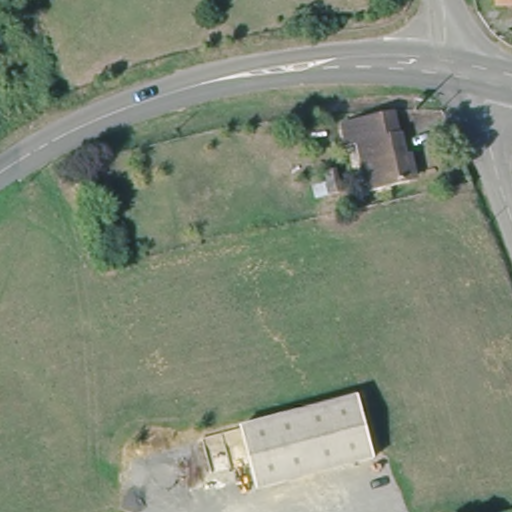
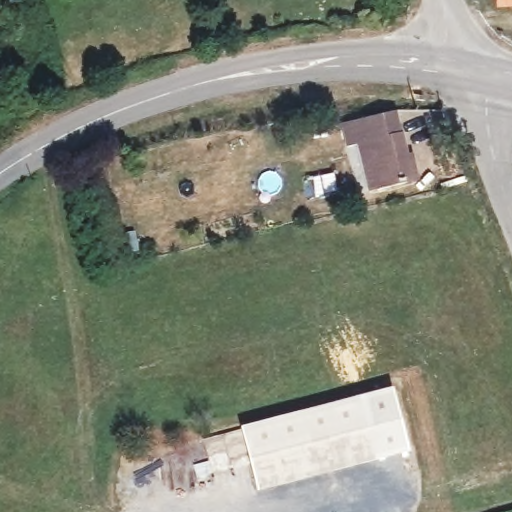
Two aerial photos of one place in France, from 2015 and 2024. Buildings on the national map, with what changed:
unchanged [(494,0),(512,0),(512,6),(494,7),(494,0)]
unchanged [(421,175),(410,177),(366,187),(354,137),(348,137),(346,121),(394,110),(405,154),(417,152),(421,175)]
unchanged [(333,166),(340,190),(328,194),(322,168),(333,166)]
new [(357,396),(392,387),(408,451),(375,461),(359,402),(357,396)]
unchanged [(359,402),(375,461),(257,492),(242,432),(359,402)]

